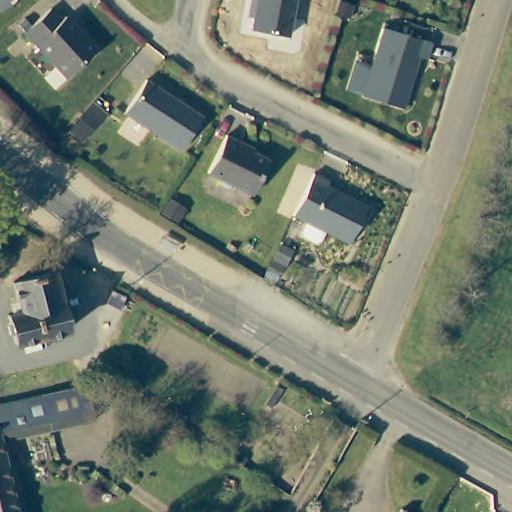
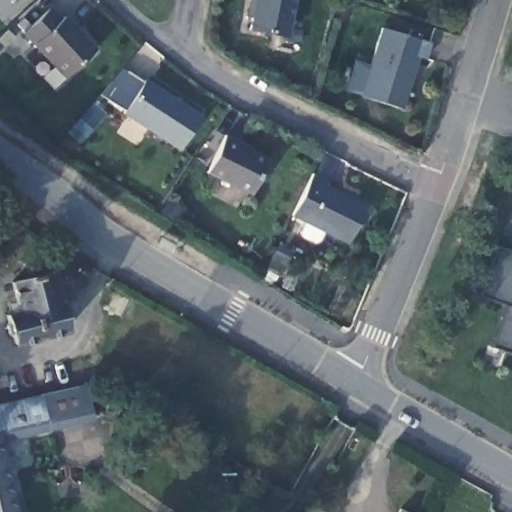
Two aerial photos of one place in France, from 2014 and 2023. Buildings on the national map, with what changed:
unchanged [(250,29),(252,16),(246,15),(249,0),(295,0),(288,37),(250,29)]
unchanged [(90,45),(59,74),(23,36),(16,29),(43,4),(54,16),(58,13),(72,27),(90,45)]
unchanged [(359,95),(381,24),(430,42),(424,59),(416,57),(399,109),(359,95)]
unchanged [(124,107),(147,72),(204,110),(184,143),(124,107)]
unchanged [(206,168),(225,130),(241,139),(240,142),(267,155),(252,190),(206,168)]
unchanged [(327,178),(324,183),(368,202),(350,241),(292,213),(312,171),(327,178)]
new [(512,252),(512,354),(489,347),(504,303),(477,294),(495,247),(512,252)]
unchanged [(18,344),(16,339),(12,339),(10,329),(14,328),(12,321),(22,317),(15,284),(57,275),(70,333),(18,344)]
unchanged [(0,435),(0,401),(82,386),(89,420),(50,427),(0,435)]
unchanged [(0,512),(0,471),(9,512),(0,512)]
unchanged [(408,512),(403,512),(404,510),(408,512)]

